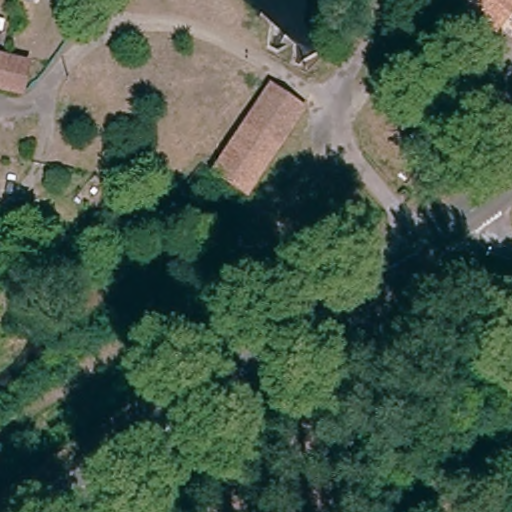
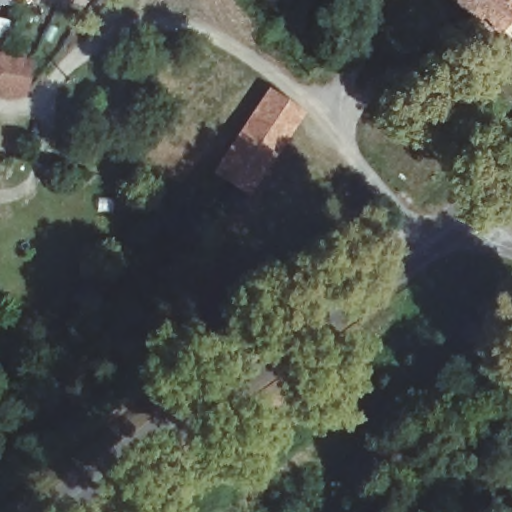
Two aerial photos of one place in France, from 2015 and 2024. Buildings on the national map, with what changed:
unchanged [(437,0),(512,0),(512,15),(486,47),(432,5),(437,0)]
unchanged [(40,53),(27,104),(0,97),(0,45),(40,53)]
unchanged [(269,90),(297,108),(278,138),(249,120),(269,90)]
unchanged [(249,120),(278,138),(242,190),(214,172),(249,120)]

